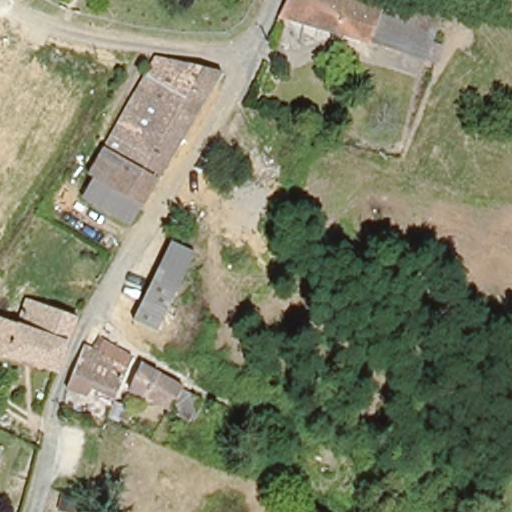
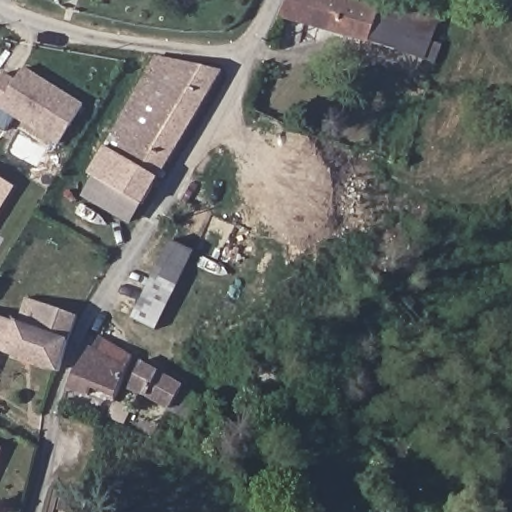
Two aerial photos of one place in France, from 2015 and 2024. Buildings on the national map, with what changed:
unchanged [(449,0),(434,42),(445,46),(439,64),(284,15),(290,0),(449,0)]
unchanged [(96,177),(90,174),(157,59),(223,75),(141,203),(140,202),(130,220),(110,208),(86,195),(96,177)]
new [(26,68),(86,104),(60,146),(0,108),(0,81),(6,71),(19,79),(26,68)]
new [(0,213),(0,177),(16,187),(0,213)]
unchanged [(130,326),(163,244),(186,252),(187,253),(155,335),(130,326)]
unchanged [(32,299),(81,318),(68,354),(63,371),(0,353),(0,319),(21,327),(32,299)]
unchanged [(91,386),(88,395),(67,387),(84,345),(99,352),(104,341),(134,356),(116,396),(91,386)]
unchanged [(176,410),(131,387),(141,360),(176,379),(185,383),(184,387),(203,396),(192,418),(176,410)]
unchanged [(0,455),(0,450),(2,451),(0,455)]

